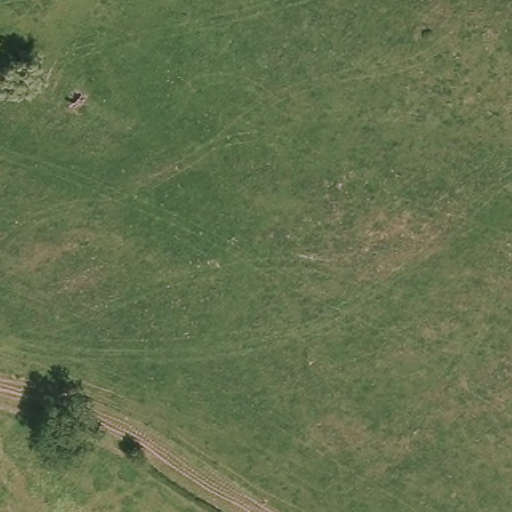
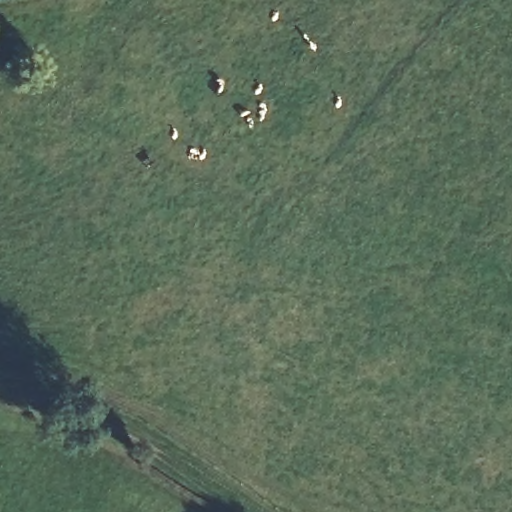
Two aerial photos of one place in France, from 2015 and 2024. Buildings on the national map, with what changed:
[]

